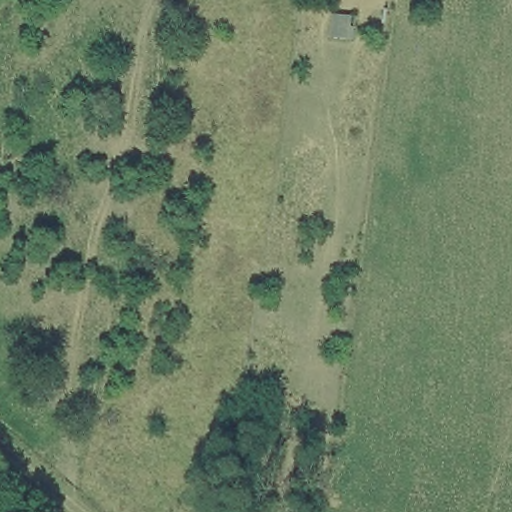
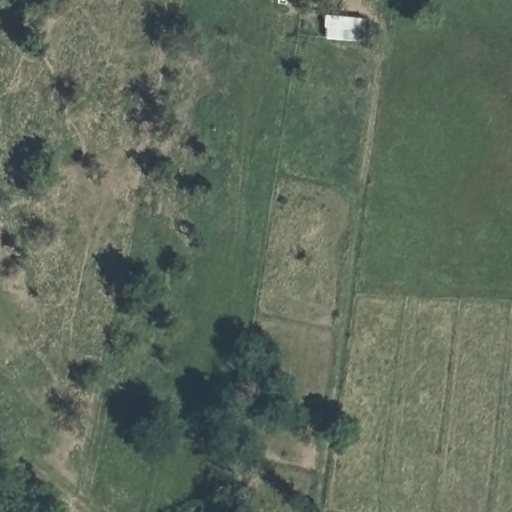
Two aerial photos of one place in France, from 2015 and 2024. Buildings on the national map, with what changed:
unchanged [(358,17),(356,39),(333,36),(336,15),(358,17)]

